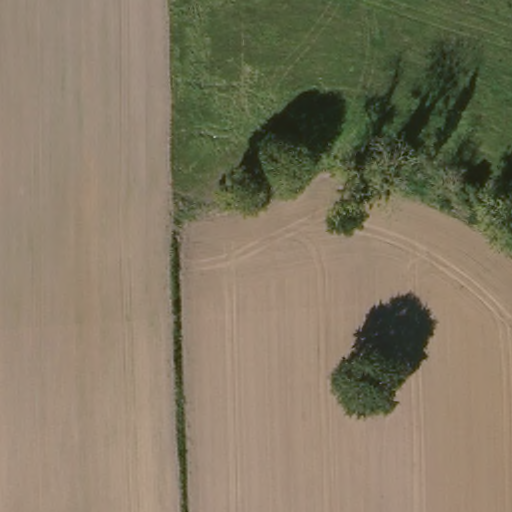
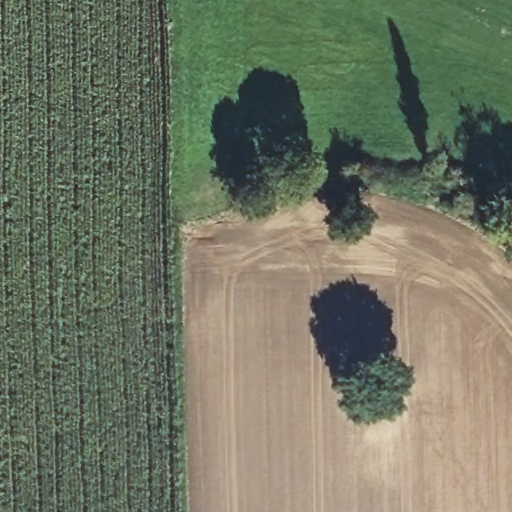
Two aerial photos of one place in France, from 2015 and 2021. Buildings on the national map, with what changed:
[]

